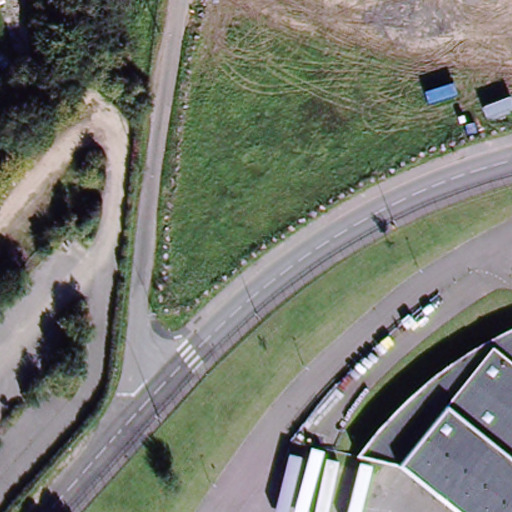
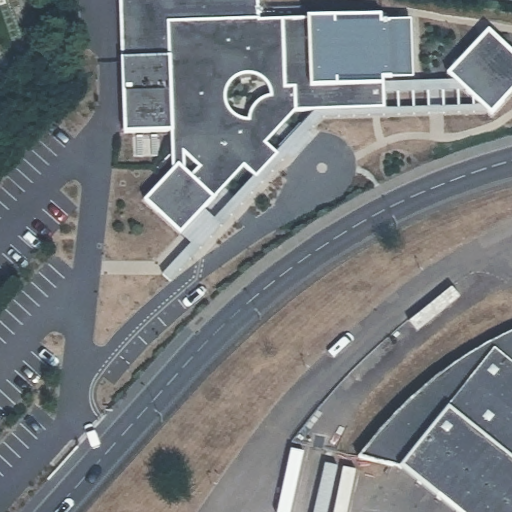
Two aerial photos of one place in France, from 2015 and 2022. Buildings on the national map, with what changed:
new [(306,17),(381,15),(381,22),(410,20),(412,79),(382,78),(383,84),(383,109),(294,112),(264,145),(276,155),(254,178),(242,167),(214,200),(179,235),(143,201),(172,170),(170,130),(122,132),(121,59),(118,0),(257,0),(258,19),(306,17)]
new [(487,30),(512,53),(512,92),(489,115),(446,74),(487,30)]
unchanged [(457,512),(402,468),(360,459),(386,427),(399,414),(414,399),(435,380),(446,373),(478,350),(512,334),(512,512),(457,512)]

